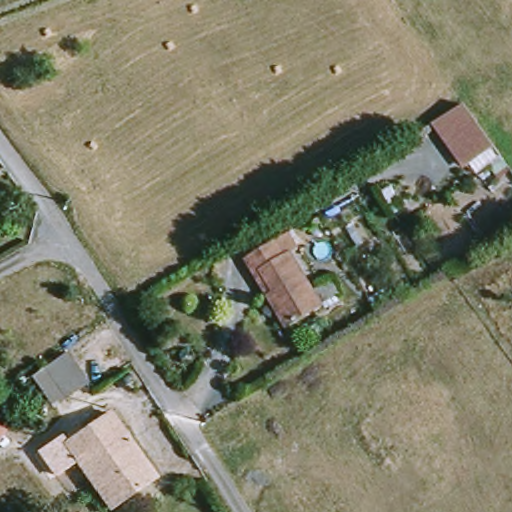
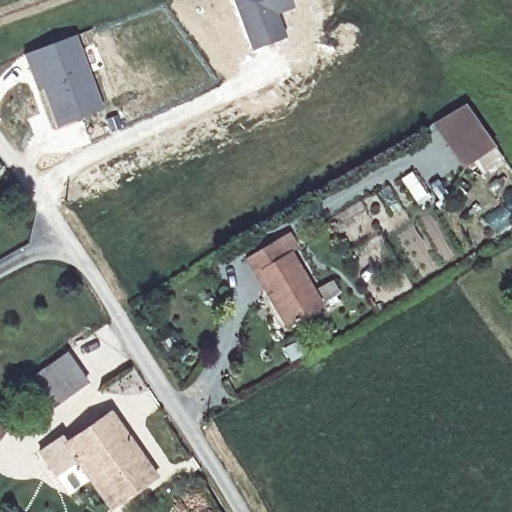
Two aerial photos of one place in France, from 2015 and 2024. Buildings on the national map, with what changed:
new [(294,6),(277,12),(285,37),(250,49),(233,0),(292,0),(294,6)]
new [(76,33),(103,108),(54,127),(39,88),(36,89),(23,52),(76,33)]
unchanged [(464,103),(494,147),(464,164),(438,118),(464,103)]
unchanged [(245,257),(290,229),(300,246),(294,250),(315,287),(334,278),(343,293),(325,305),(286,327),(245,257)]
unchanged [(54,369),(73,355),(94,381),(74,397),(54,369)]
unchanged [(72,431),(77,438),(123,406),(171,473),(123,509),(90,460),(65,477),(46,448),(72,431)]

